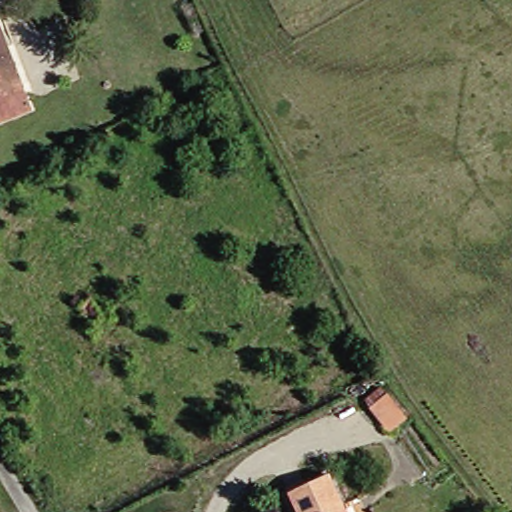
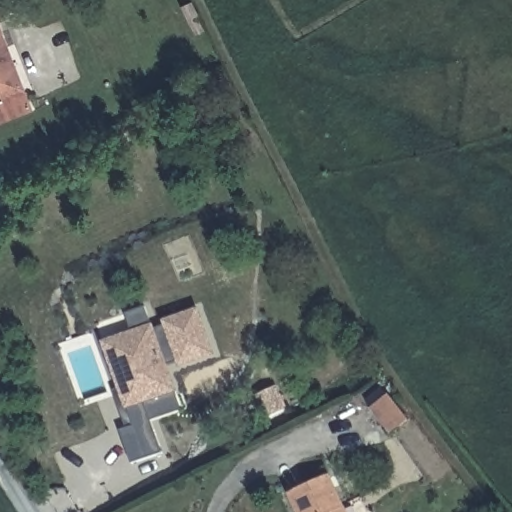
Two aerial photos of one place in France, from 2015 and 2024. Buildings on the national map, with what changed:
unchanged [(1,122),(0,121),(0,15),(36,109),(1,122)]
new [(151,420),(162,452),(131,463),(120,430),(133,425),(117,378),(104,343),(132,333),(126,314),(146,307),(154,329),(166,325),(165,321),(197,310),(212,353),(180,365),(179,361),(166,366),(175,390),(181,409),(151,420)]
unchanged [(410,420),(387,433),(363,401),(386,386),(410,420)]
unchanged [(335,476),(351,512),(302,512),(295,495),(335,476)]

